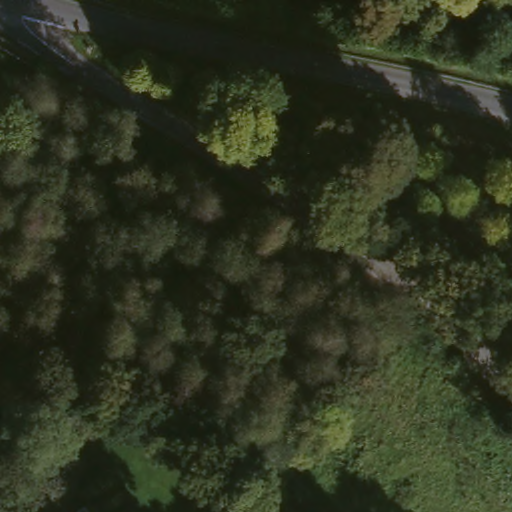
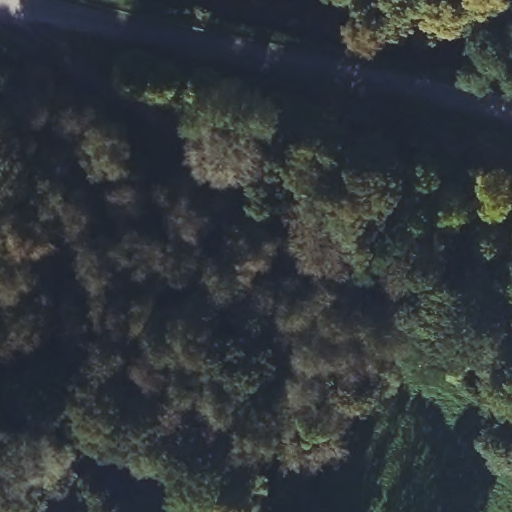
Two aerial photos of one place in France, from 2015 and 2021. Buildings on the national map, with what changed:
[]

